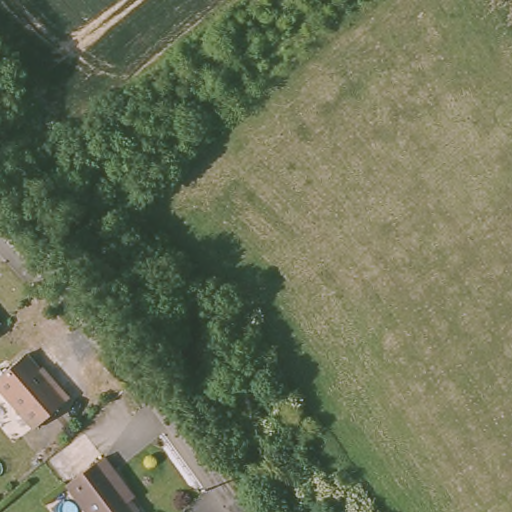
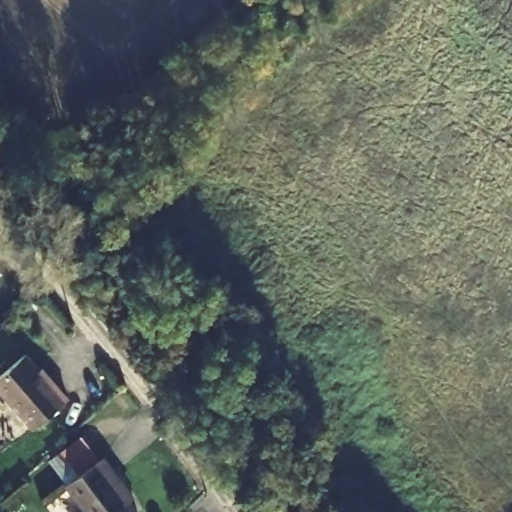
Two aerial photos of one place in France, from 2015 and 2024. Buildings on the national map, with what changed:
unchanged [(52,368),(54,367),(73,388),(39,419),(0,376),(0,371),(30,344),(52,368)]
unchanged [(100,453),(112,470),(108,473),(136,512),(85,512),(63,480),(100,453)]

